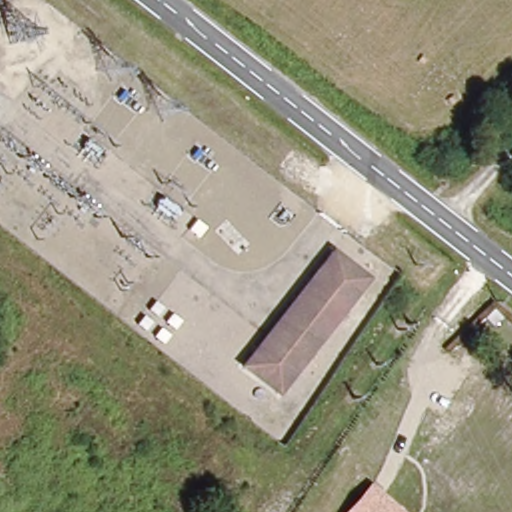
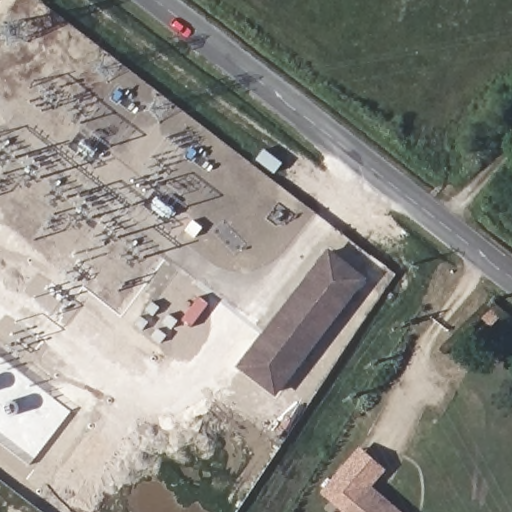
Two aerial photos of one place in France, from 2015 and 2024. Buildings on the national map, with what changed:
unchanged [(363,277),(273,391),(240,365),(331,252),(363,277)]
new [(322,492),(360,447),(386,470),(372,485),(369,482),(344,512),(322,492)]
unchanged [(369,482),(403,512),(345,512),(369,482)]

